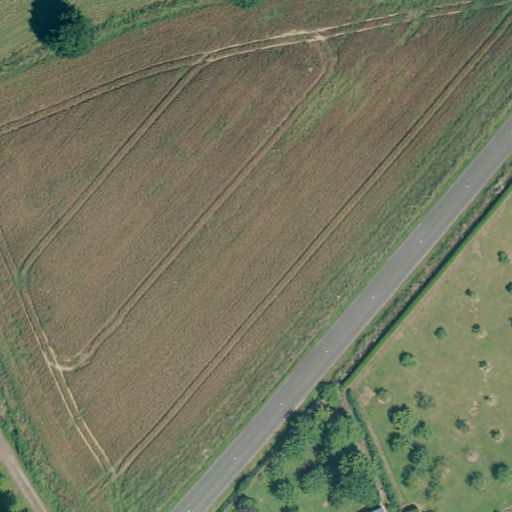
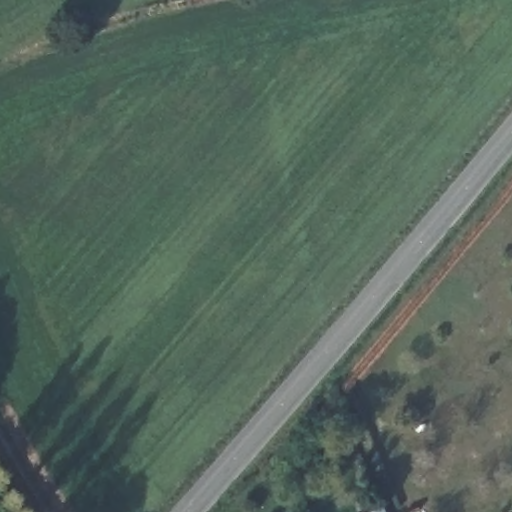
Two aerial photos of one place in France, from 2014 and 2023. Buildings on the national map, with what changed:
unchanged [(360,512),(377,503),(381,512),(360,512)]

